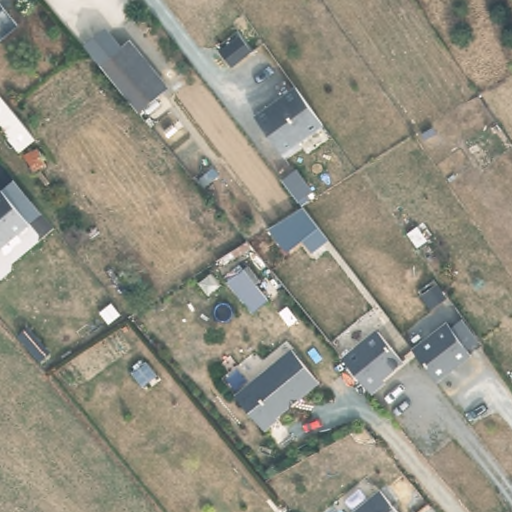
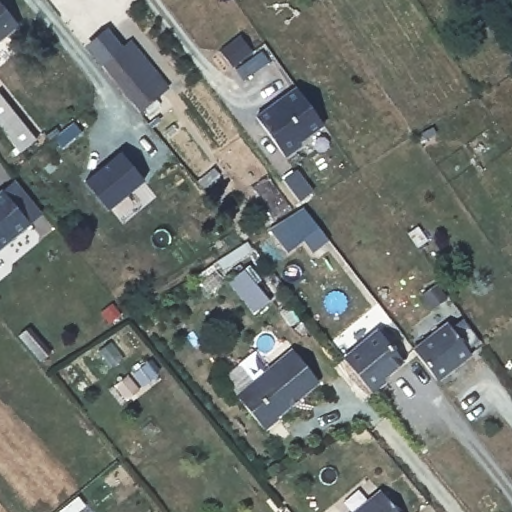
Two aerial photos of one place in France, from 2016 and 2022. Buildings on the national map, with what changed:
unchanged [(0,42),(0,0),(1,0),(20,25),(0,42)]
unchanged [(129,33),(169,81),(159,88),(140,104),(101,57),(120,41),(129,33)]
unchanged [(253,50),(231,69),(218,51),(240,34),(253,50)]
unchanged [(325,126),(284,156),(255,118),(298,87),(325,126)]
unchanged [(21,153),(0,127),(0,92),(9,104),(38,139),(21,153)]
new [(118,154),(140,181),(105,211),(82,183),(118,154)]
unchanged [(30,228),(26,231),(0,253),(0,197),(3,194),(30,228)]
unchanged [(303,207),(328,240),(313,253),(303,241),(289,251),(269,229),(303,207)]
unchanged [(244,273),(269,305),(254,317),(228,286),(244,273)]
unchanged [(452,331),(464,321),(475,337),(480,343),(468,353),(471,358),(437,384),(428,372),(413,353),(448,326),(452,331)]
unchanged [(382,377),(384,381),(371,392),(352,369),(342,357),(377,329),(403,360),(382,377)]
unchanged [(292,353),(318,386),(297,403),(295,402),(289,407),(289,409),(275,421),(278,423),(264,433),(236,399),(292,353)]
unchanged [(379,494),(394,512),(359,512),(379,494)]

